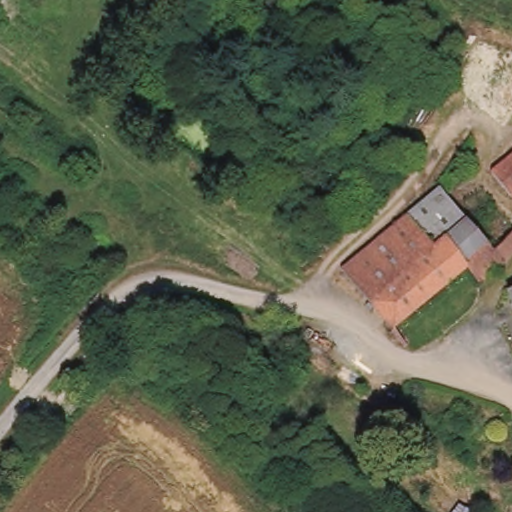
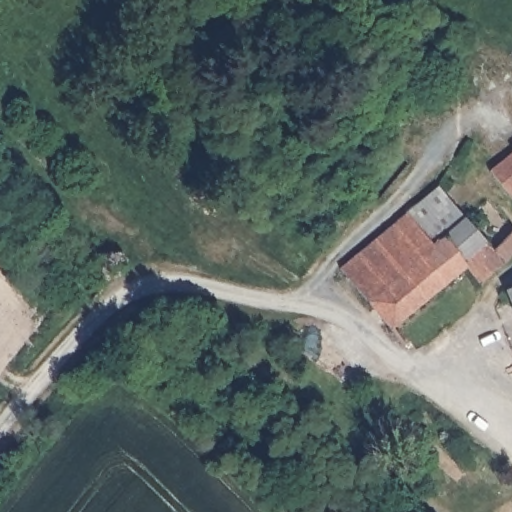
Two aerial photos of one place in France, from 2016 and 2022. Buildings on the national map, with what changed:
unchanged [(512,192),(488,165),(512,145),(512,192)]
unchanged [(467,214),(465,216),(497,251),(512,238),(512,260),(484,286),(468,266),(394,330),(369,302),(345,266),(441,185),(467,214)]
unchanged [(512,292),(512,299),(509,293),(512,292)]
unchanged [(338,380),(343,387),(336,392),(331,385),(338,380)]

